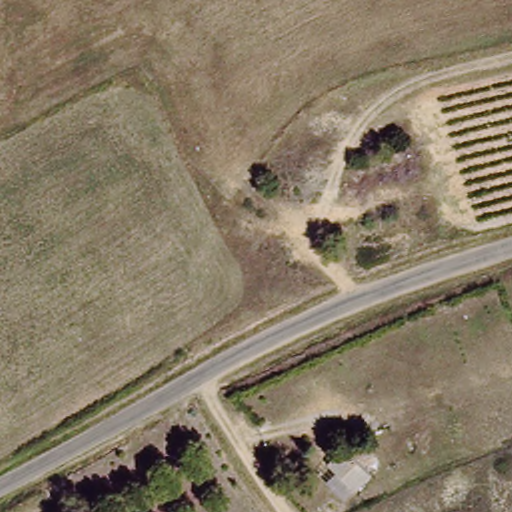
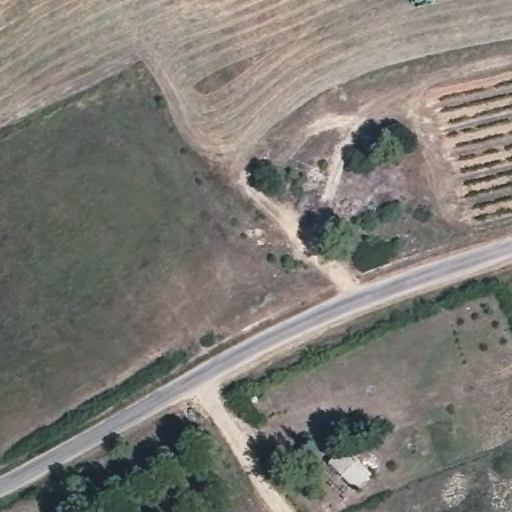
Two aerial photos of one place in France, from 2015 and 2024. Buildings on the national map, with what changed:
unchanged [(364,475),(358,483),(356,480),(345,488),(327,463),(347,449),(364,475)]

